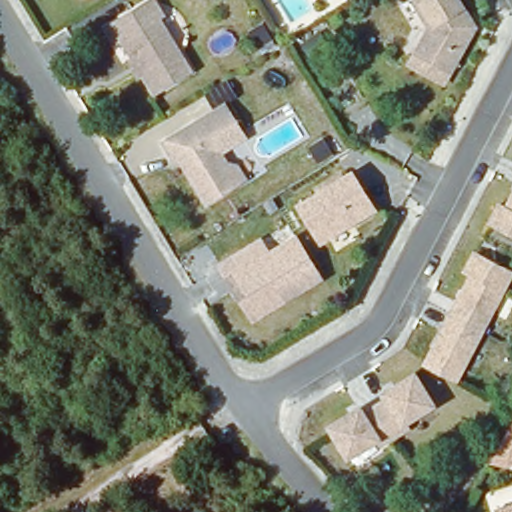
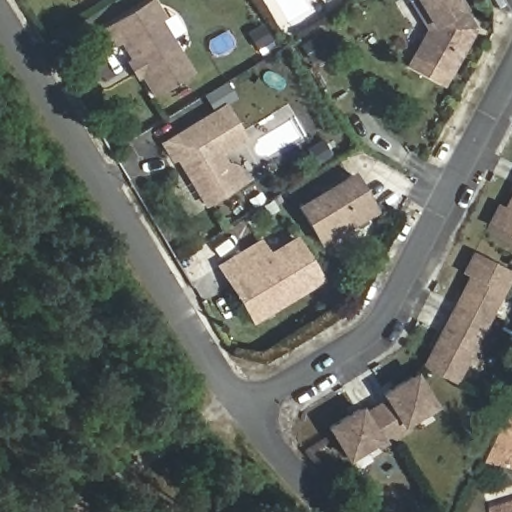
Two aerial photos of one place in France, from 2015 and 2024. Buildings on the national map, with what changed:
unchanged [(132,62),(138,59),(126,40),(120,44),(110,29),(158,0),(169,17),(165,19),(197,71),(159,94),(147,74),(140,78),(132,62)]
unchanged [(451,73),(417,56),(430,30),(411,0),(457,0),(468,19),(474,29),(451,73)]
unchanged [(260,32),(271,50),(256,59),(245,42),(260,32)]
unchanged [(246,184),(237,189),(208,208),(189,177),(179,162),(174,165),(165,147),(226,110),(246,142),(221,158),(227,167),(237,170),(246,184)]
unchanged [(296,204),(355,170),(378,211),(321,246),(296,204)]
unchanged [(504,206),(510,210),(512,206),(512,235),(493,225),(504,206)]
unchanged [(235,290),(226,275),(265,252),(272,266),(301,249),(325,287),(302,301),(258,327),(235,290)]
unchanged [(453,316),(473,278),(467,275),(478,256),(512,274),(512,280),(457,381),(428,365),(453,316)]
unchanged [(363,408),(367,415),(378,407),(390,401),(386,394),(418,376),(436,406),(406,423),(410,428),(383,445),(380,440),(351,457),(335,433),(333,427),(363,408)]
unchanged [(489,465),(509,430),(512,423),(512,470),(489,465)]
unchanged [(512,509),(512,512),(501,512),(512,509)]

